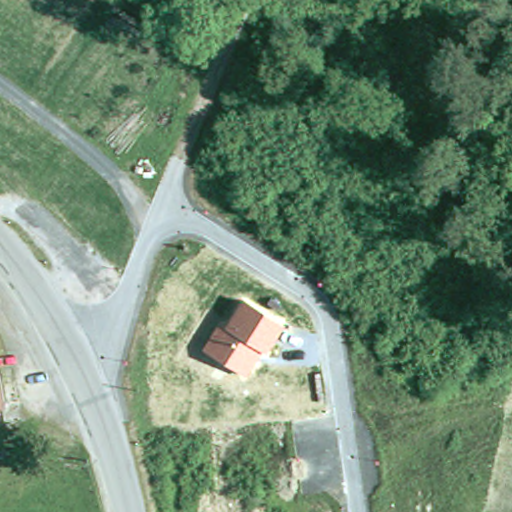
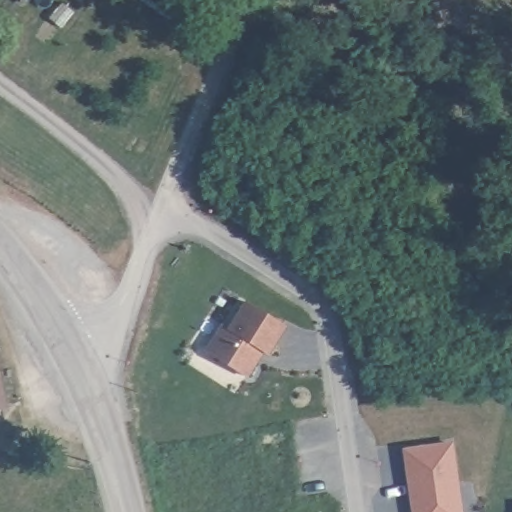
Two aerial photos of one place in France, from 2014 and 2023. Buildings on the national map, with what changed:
demolished [(67,248),(22,199),(36,186),(83,234),(67,248)]
unchanged [(286,325),(270,355),(259,349),(244,375),(201,351),(216,323),(226,329),(241,300),(286,325)]
unchanged [(0,404),(1,407),(0,407),(0,402),(0,404)]
new [(400,448),(452,440),(462,512),(409,512),(400,448)]

